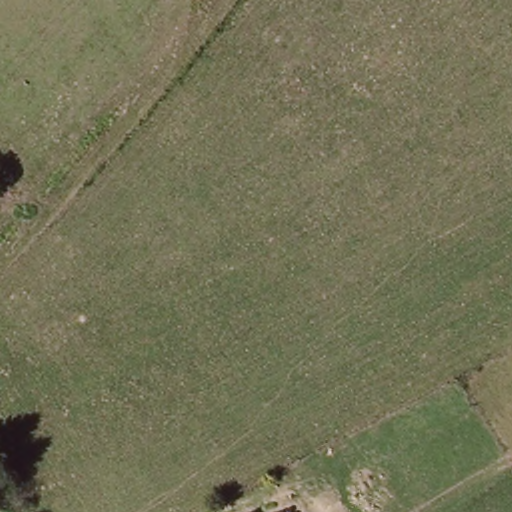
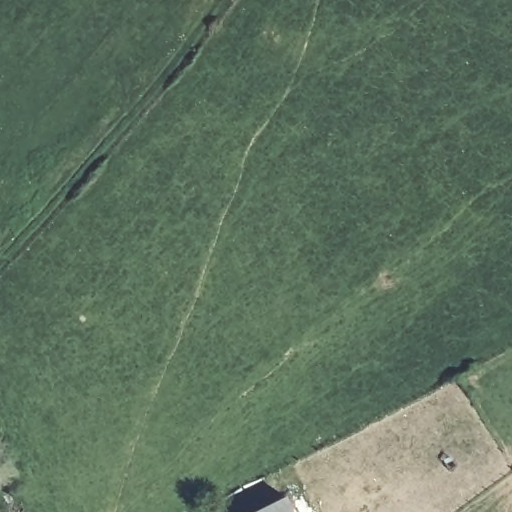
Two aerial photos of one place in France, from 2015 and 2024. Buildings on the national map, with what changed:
new [(290,497),(298,512),(259,512),(290,497)]

